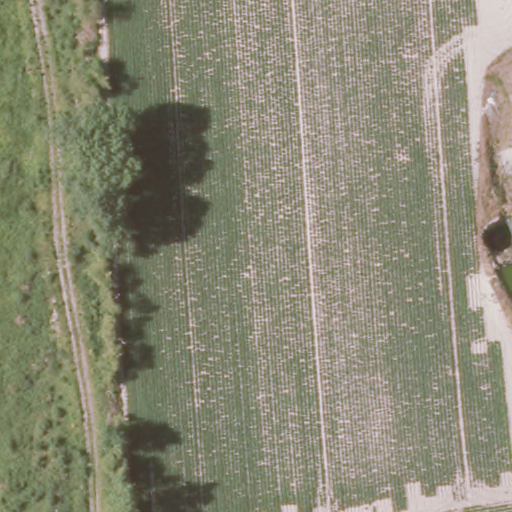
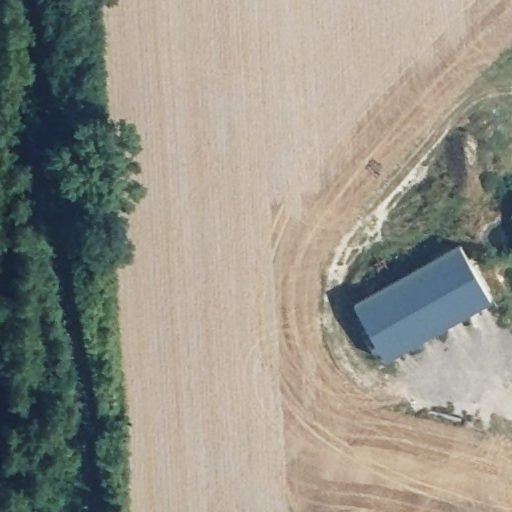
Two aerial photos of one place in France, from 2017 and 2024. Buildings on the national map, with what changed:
new [(462,244),(493,300),(387,360),(356,303),(462,244)]

